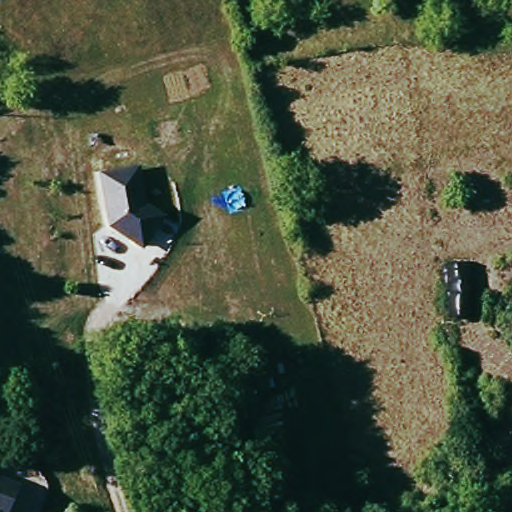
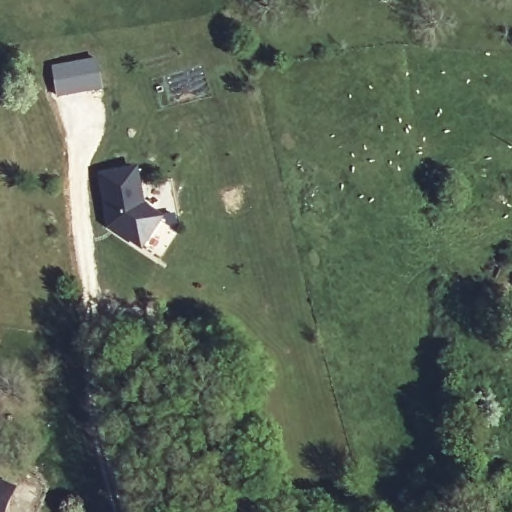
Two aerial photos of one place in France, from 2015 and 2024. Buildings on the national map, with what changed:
new [(99,59),(104,90),(57,97),(52,66),(99,59)]
unchanged [(109,225),(98,172),(142,164),(148,200),(167,212),(142,249),(109,225)]
unchanged [(1,512),(0,512),(0,485),(10,490),(1,512)]

